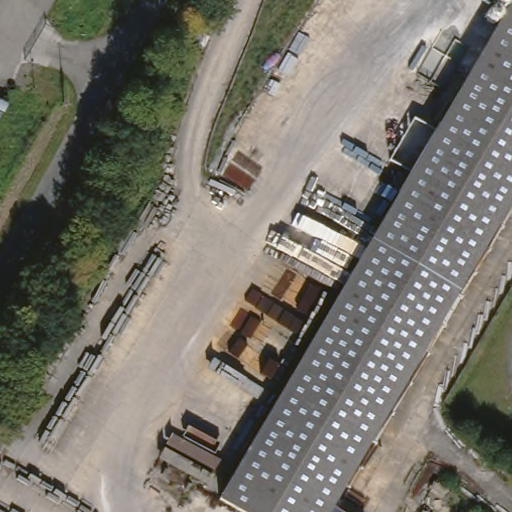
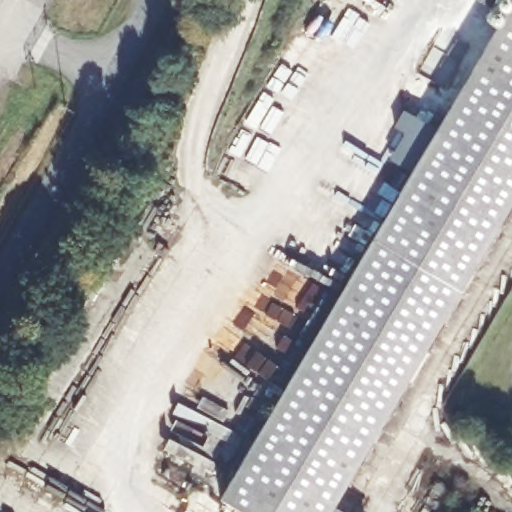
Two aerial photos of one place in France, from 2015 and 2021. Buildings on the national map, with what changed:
unchanged [(512,197),(327,498),(348,512),(243,512),(210,494),(512,10),(512,197)]

